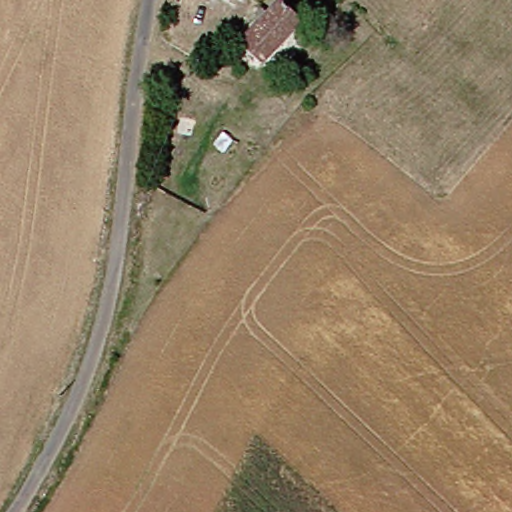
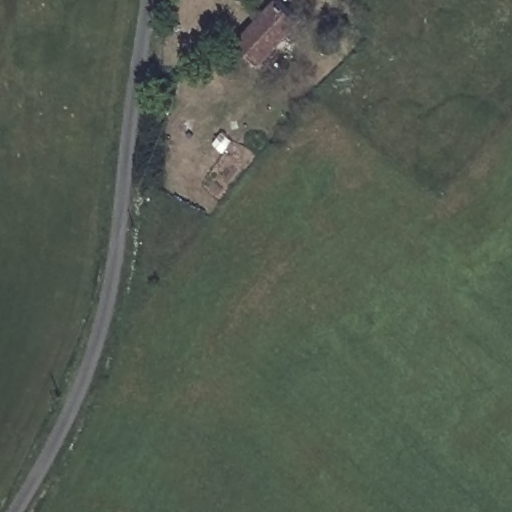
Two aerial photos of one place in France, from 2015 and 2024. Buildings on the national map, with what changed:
unchanged [(265,65),(243,43),(282,0),(292,0),(307,16),(267,63),(265,65)]

